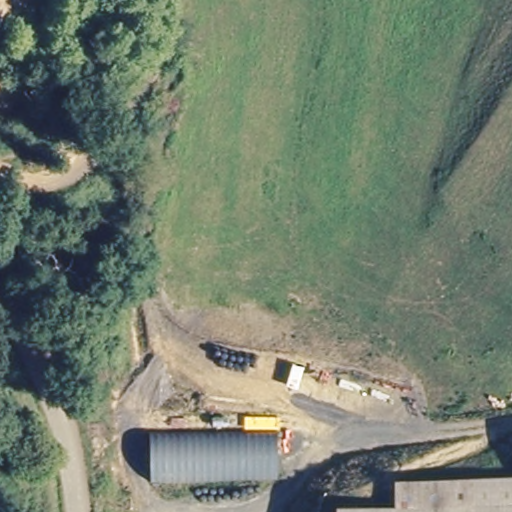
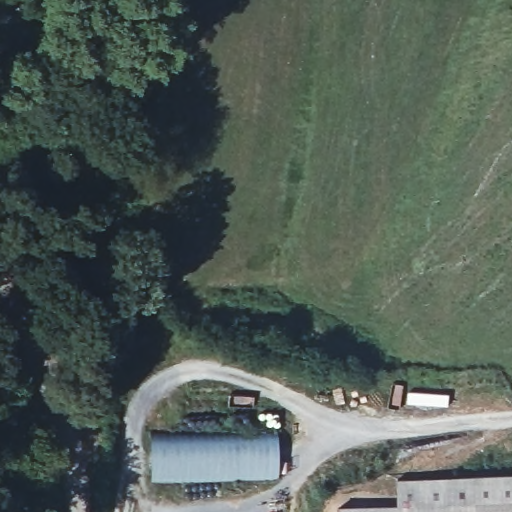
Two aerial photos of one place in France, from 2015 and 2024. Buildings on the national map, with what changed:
unchanged [(278,429),(279,482),(150,483),(150,429),(278,429)]
unchanged [(401,503),(400,476),(512,479),(512,512),(406,512),(401,503)]
unchanged [(401,503),(406,512),(341,512),(341,501),(401,503)]

